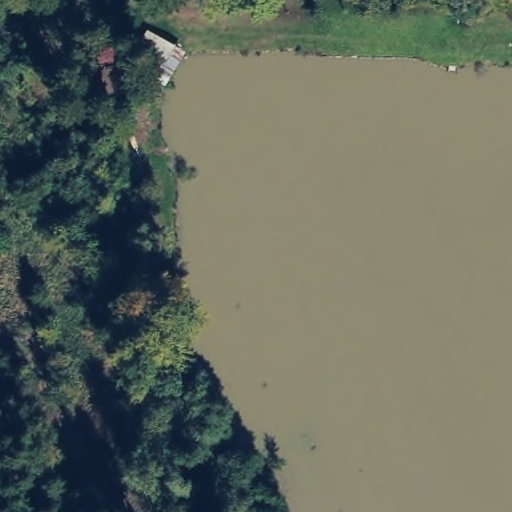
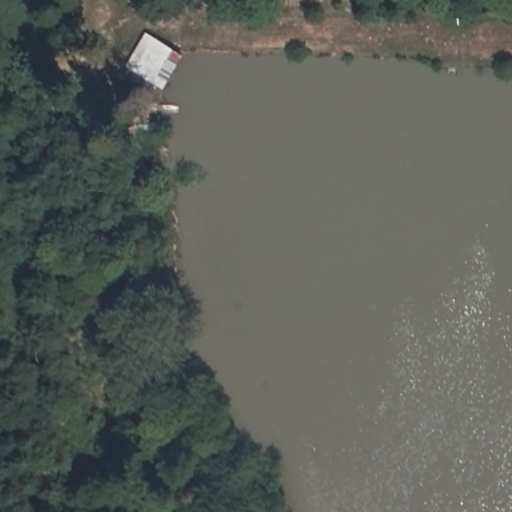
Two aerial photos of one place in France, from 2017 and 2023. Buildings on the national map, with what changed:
unchanged [(187,53),(167,89),(137,70),(157,37),(187,53)]

